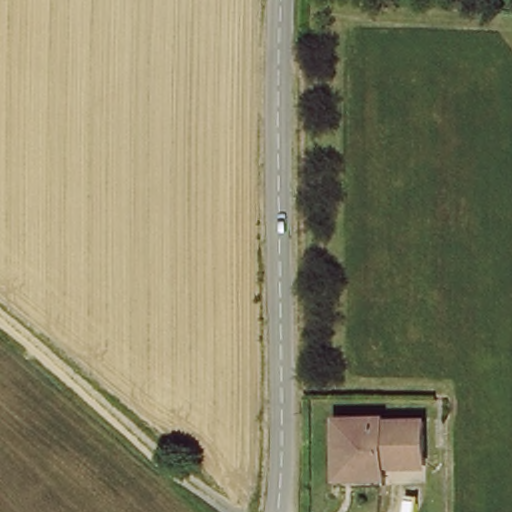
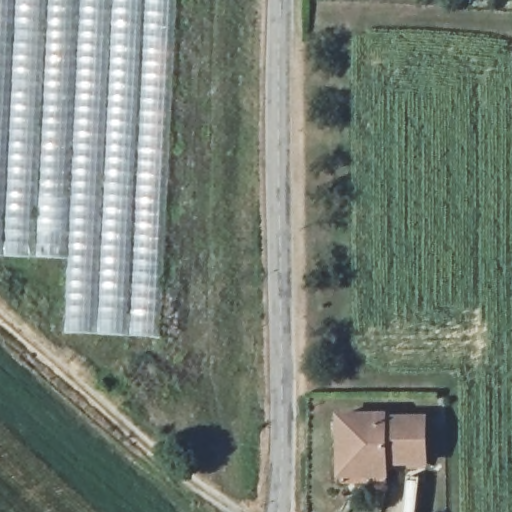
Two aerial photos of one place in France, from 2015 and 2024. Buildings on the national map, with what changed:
new [(0,257),(0,0),(174,0),(158,340),(62,336),(67,260),(0,257)]
unchanged [(389,421),(389,424),(429,424),(429,468),(389,468),(389,481),(359,481),(359,449),(367,449),(367,442),(344,442),(344,421),(389,421)]

